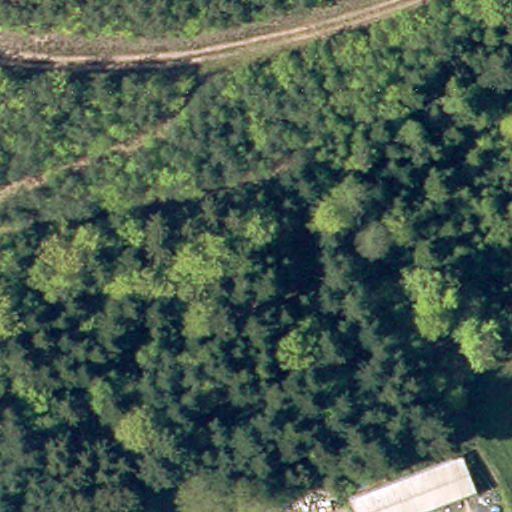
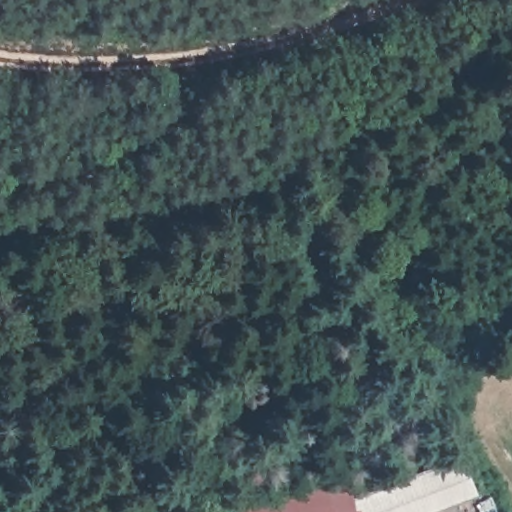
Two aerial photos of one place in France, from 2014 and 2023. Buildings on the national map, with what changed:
unchanged [(479,498),(438,512),(356,512),(351,498),(465,459),(479,498)]
new [(355,512),(238,512),(239,504),(347,488),(351,498),(355,512)]

